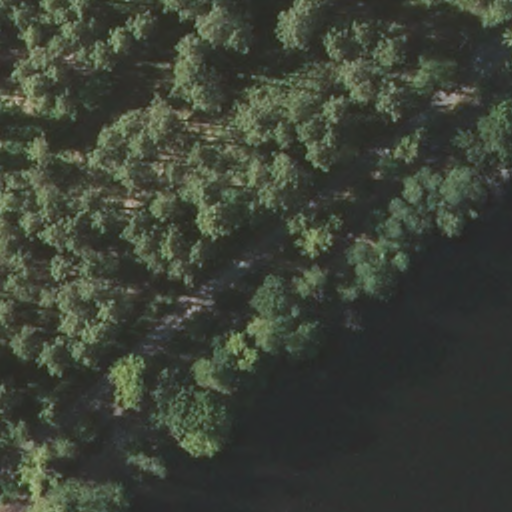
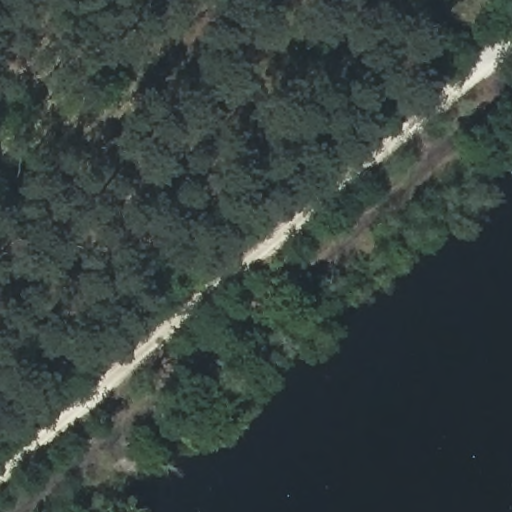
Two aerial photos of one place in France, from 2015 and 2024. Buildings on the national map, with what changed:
[]

